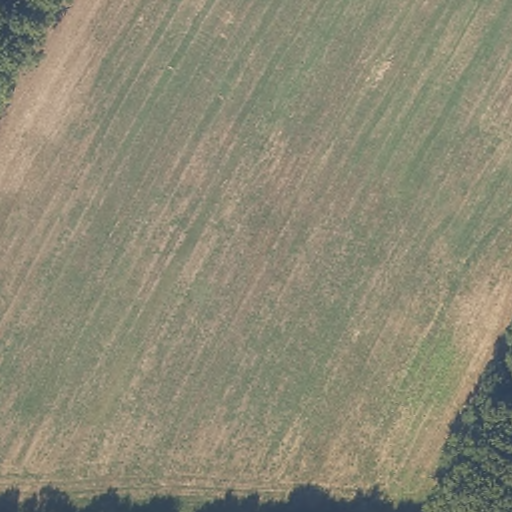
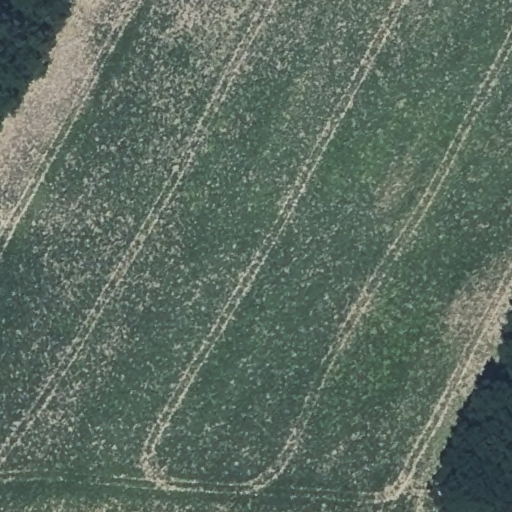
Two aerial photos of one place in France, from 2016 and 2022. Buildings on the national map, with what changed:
[]

